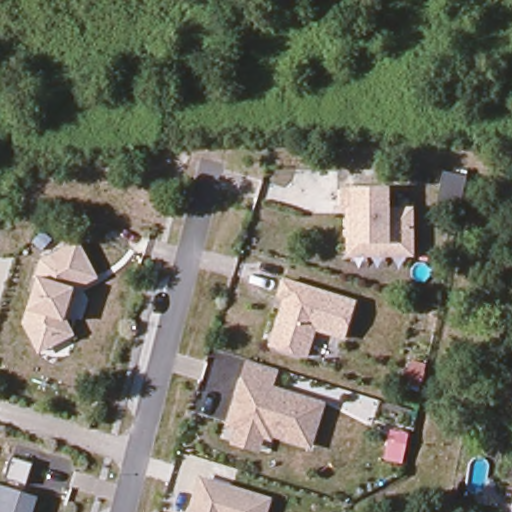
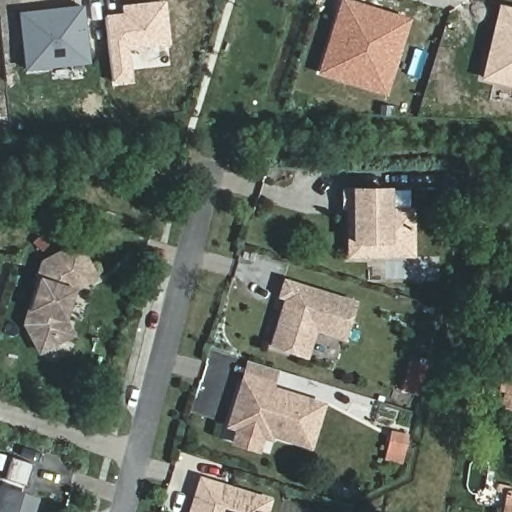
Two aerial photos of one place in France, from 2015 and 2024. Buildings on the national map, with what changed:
new [(339,0),(353,0),(411,18),(387,96),(316,74),(339,0)]
new [(105,14),(120,11),(121,4),(165,1),(170,45),(129,50),(132,78),(111,82),(105,14)]
new [(90,64),(24,71),(18,11),(83,5),(90,64)]
new [(498,5),(512,8),(512,87),(480,80),(498,5)]
unchanged [(459,213),(437,208),(447,169),(468,174),(459,213)]
unchanged [(416,261),(348,262),(348,211),(340,211),(341,189),(353,188),(391,188),(392,208),(416,208),(416,261)]
unchanged [(76,292),(67,317),(76,334),(41,356),(23,324),(41,259),(81,240),(100,280),(76,292)]
unchanged [(348,340),(318,332),(310,360),(271,348),(284,302),(278,300),(284,279),(358,300),(348,340)]
unchanged [(328,403),(313,450),(275,439),(273,443),(265,441),(260,455),(233,447),(238,431),(227,428),(246,360),(280,370),(275,387),(328,403)]
new [(20,484),(3,479),(9,457),(31,464),(26,480),(25,485),(20,484)]
unchanged [(188,512),(200,476),(273,500),(270,512),(188,512)]
unchanged [(0,512),(0,485),(40,497),(35,512),(0,512)]

